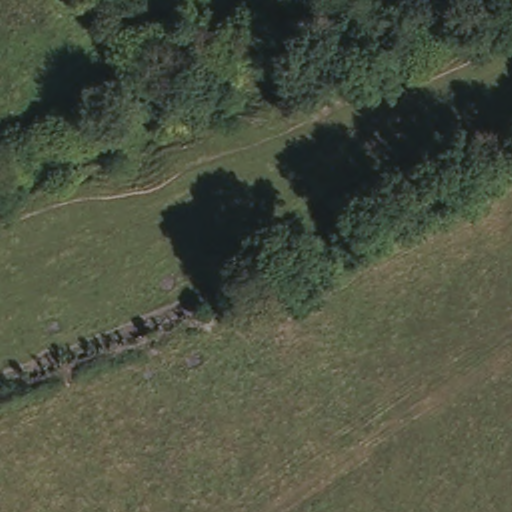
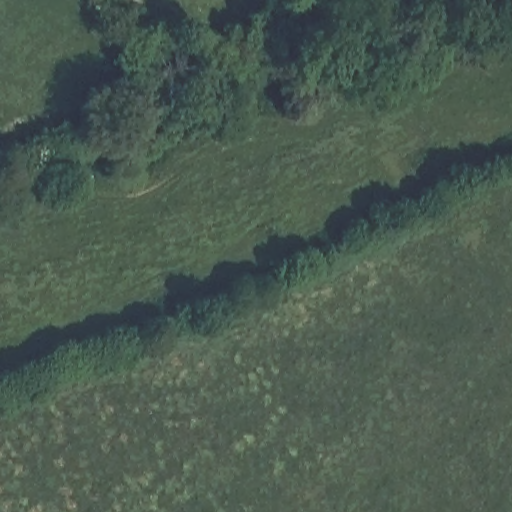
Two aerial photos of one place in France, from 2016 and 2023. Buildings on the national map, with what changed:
[]

